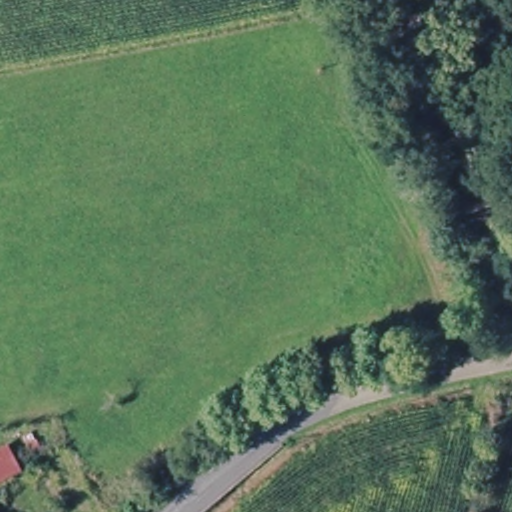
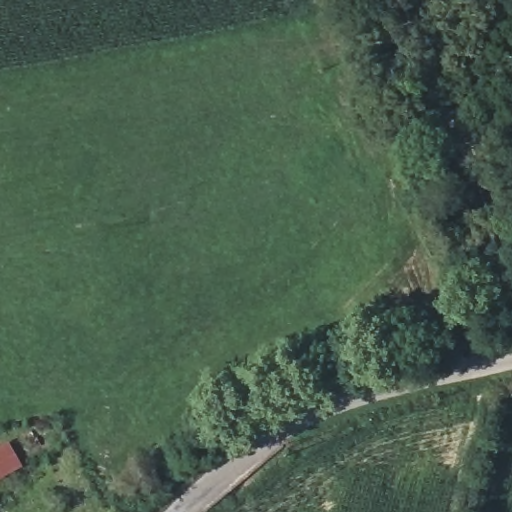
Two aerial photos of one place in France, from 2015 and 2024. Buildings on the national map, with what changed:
unchanged [(0,448),(9,444),(25,469),(0,486),(0,448)]

